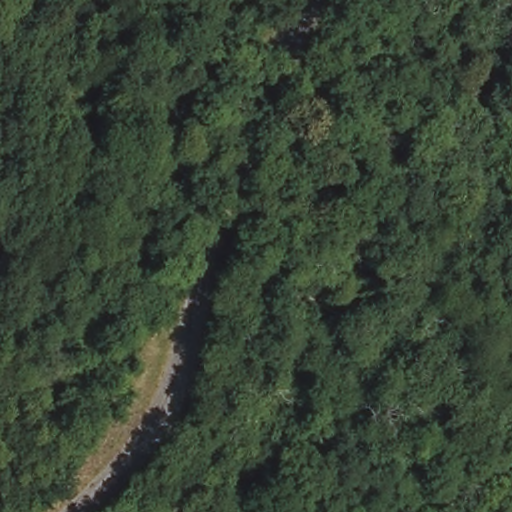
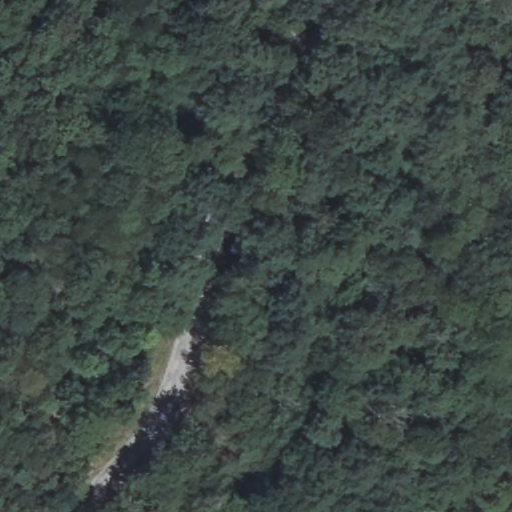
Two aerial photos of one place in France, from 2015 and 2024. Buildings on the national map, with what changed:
unchanged [(148,16),(137,10),(142,0),(156,0),(148,16)]

